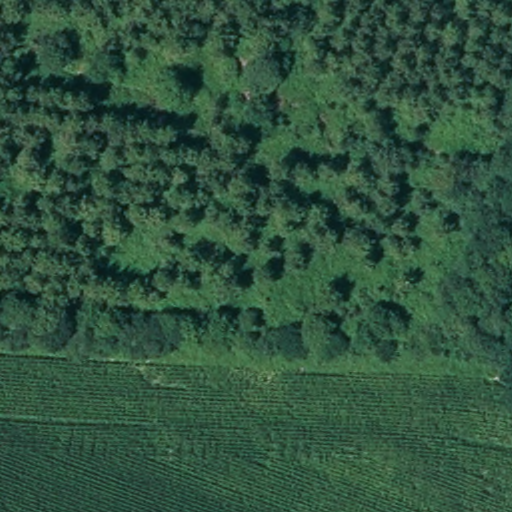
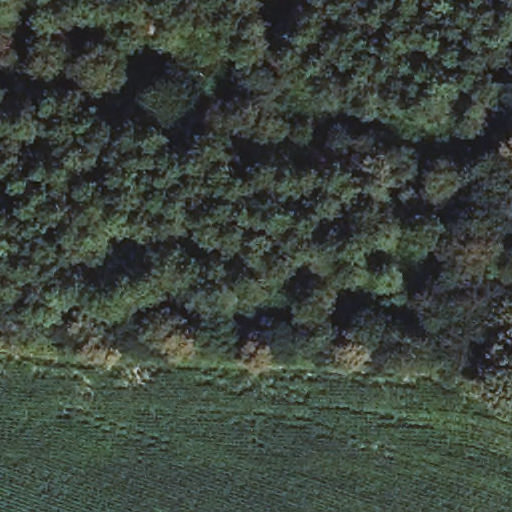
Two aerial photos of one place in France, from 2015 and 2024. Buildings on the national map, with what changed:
[]

